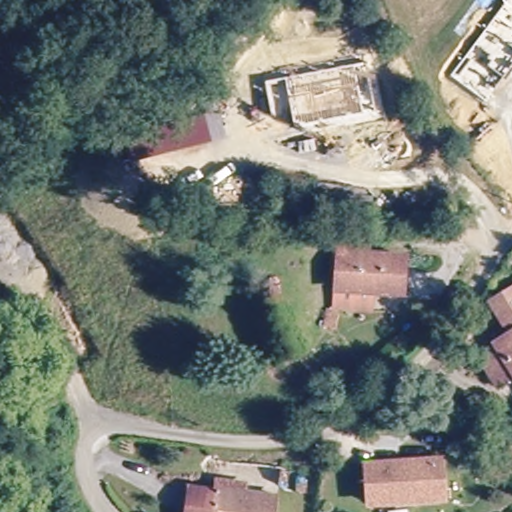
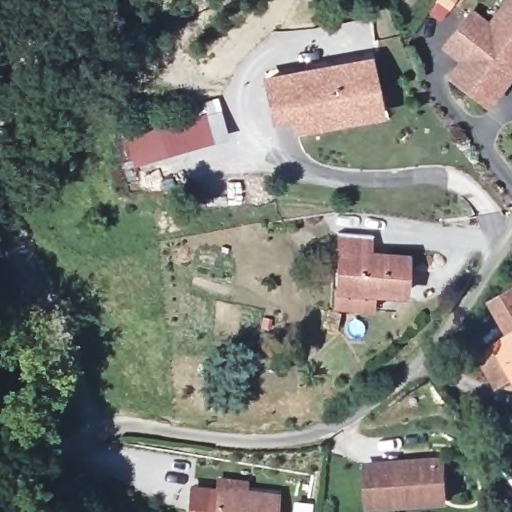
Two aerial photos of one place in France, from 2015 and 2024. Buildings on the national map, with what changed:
new [(471,15),(489,29),(511,0),(512,0),(512,69),(486,104),(452,77),(464,63),(446,49),(471,15)]
new [(289,112),(268,116),(263,85),(262,81),(268,80),(352,65),(364,63),(375,122),(362,124),(293,137),(289,112)]
new [(207,124),(215,148),(135,173),(128,149),(207,124)]
unchanged [(361,256),(397,261),(394,297),(333,291),(337,235),(363,234),(361,256)]
unchanged [(506,321),(505,319),(497,305),(512,297),(512,333),(506,321)]
unchanged [(496,378),(481,351),(512,334),(512,368),(496,378)]
unchanged [(367,469),(439,456),(446,495),(374,508),(367,469)]
unchanged [(278,512),(182,512),(186,487),(280,500),(278,512)]

